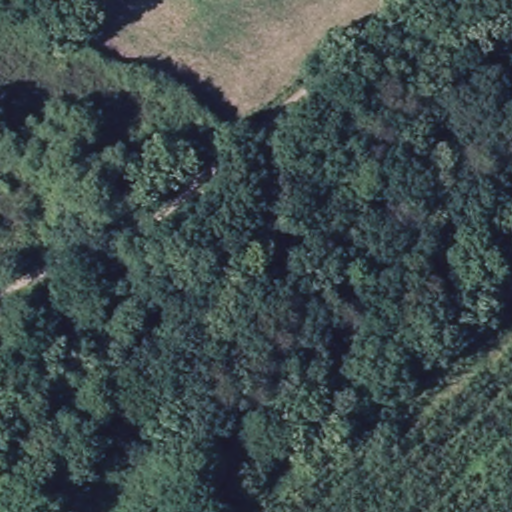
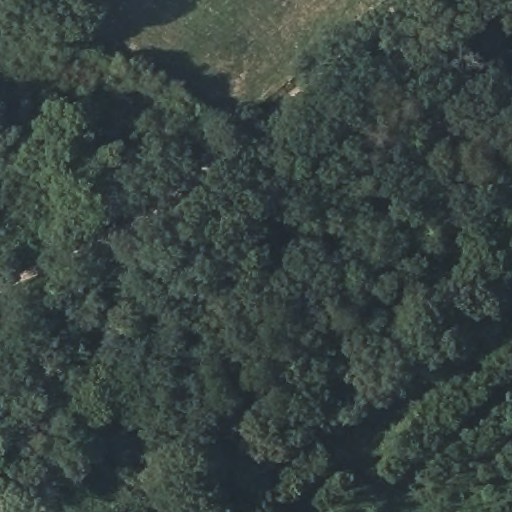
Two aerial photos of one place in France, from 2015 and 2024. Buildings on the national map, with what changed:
[]

